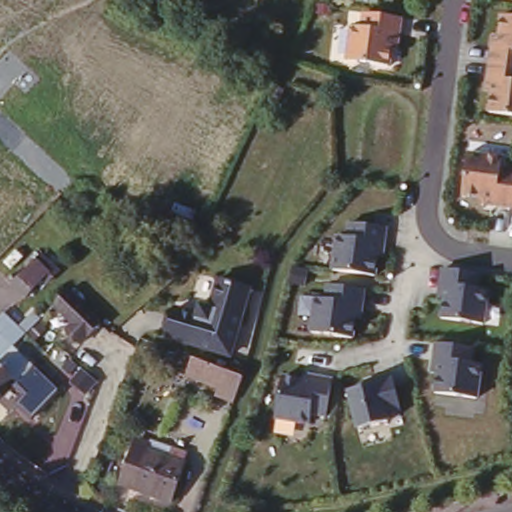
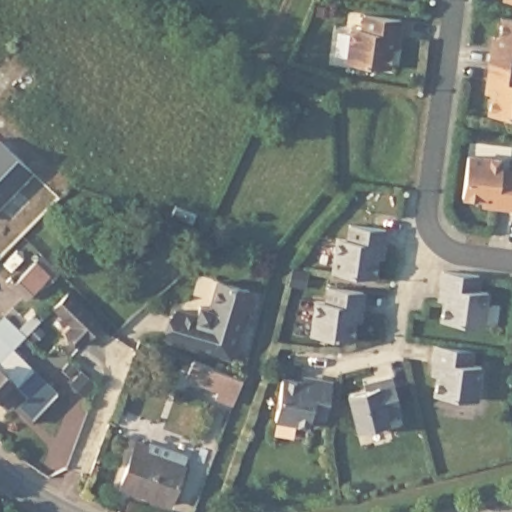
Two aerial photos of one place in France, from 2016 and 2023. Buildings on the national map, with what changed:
unchanged [(505,0),(512,0),(512,2),(505,1),(505,0)]
unchanged [(391,63),(343,58),(346,25),(355,27),(358,12),(397,16),(391,63)]
unchanged [(480,85),(487,31),(500,30),(500,17),(512,18),(512,114),(484,110),(487,87),(480,85)]
new [(1,136),(31,167),(0,199),(0,138),(1,136)]
unchanged [(482,198),(461,195),(466,150),(498,152),(497,168),(512,169),(512,210),(482,207),(482,198)]
unchanged [(377,261),(372,260),(370,275),(326,270),(330,234),(340,235),(341,223),(381,227),(377,261)]
unchanged [(34,258),(47,270),(27,292),(14,278),(34,258)]
unchanged [(477,269),(475,285),(485,286),(482,323),(433,315),(440,266),(477,269)]
unchanged [(224,273),(255,282),(235,349),(172,331),(181,302),(202,308),(205,298),(217,302),(219,297),(216,296),(224,273)]
unchanged [(357,319),(350,336),(306,331),(310,300),(317,300),(320,285),(361,288),(357,319)]
unchanged [(60,329),(67,323),(48,304),(62,289),(96,322),(75,343),(60,329)]
unchanged [(11,330),(30,313),(37,320),(7,351),(0,359),(0,319),(11,330)]
unchanged [(472,348),(468,361),(480,363),(476,397),(435,391),(435,376),(428,370),(431,345),(472,348)]
unchanged [(174,353),(171,362),(156,357),(160,348),(174,353)]
unchanged [(7,351),(27,371),(12,386),(7,381),(0,388),(0,359),(7,351)]
unchanged [(210,394),(212,387),(180,375),(188,356),(236,375),(227,401),(210,394)]
unchanged [(327,385),(325,418),(305,415),(304,423),(273,419),(280,376),(327,385)]
unchanged [(395,407),(380,412),(381,421),(356,426),(347,387),(390,378),(395,407)]
unchanged [(175,469),(177,469),(164,506),(126,493),(135,466),(123,462),(130,444),(141,449),(143,445),(164,453),(179,458),(175,469)]

